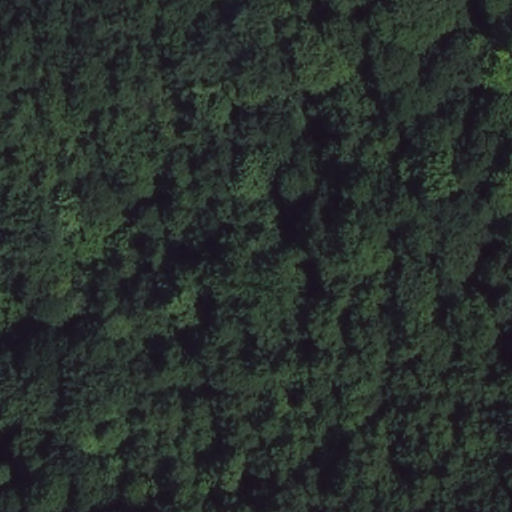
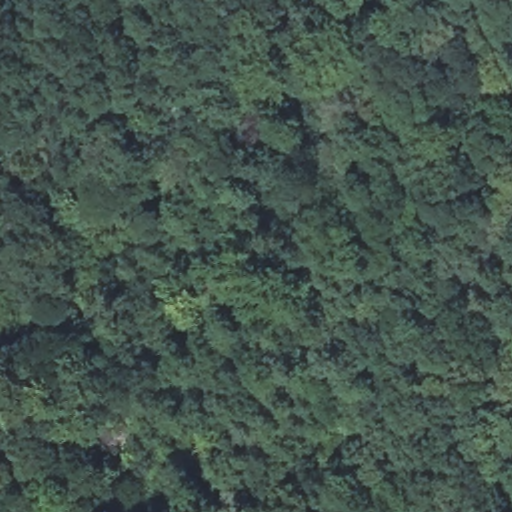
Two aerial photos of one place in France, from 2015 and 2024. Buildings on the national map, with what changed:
[]

